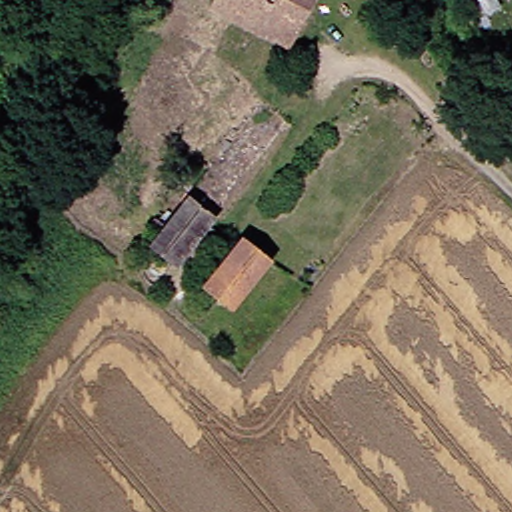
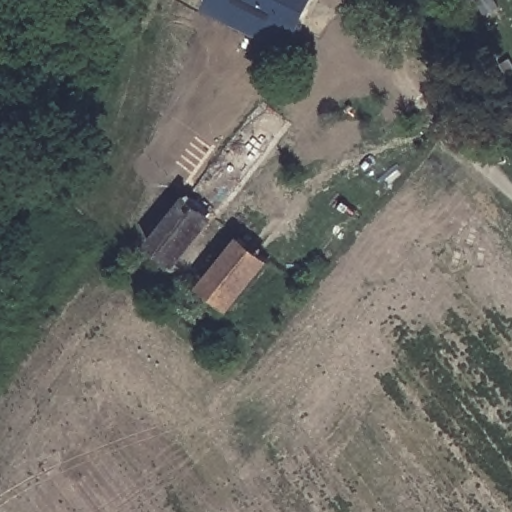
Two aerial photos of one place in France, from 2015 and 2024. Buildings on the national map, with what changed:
unchanged [(199,7),(202,0),(304,0),(293,22),(282,46),(199,7)]
unchanged [(140,241),(176,194),(200,214),(162,261),(140,241)]
unchanged [(260,259),(220,308),(192,285),(231,235),(260,259)]

